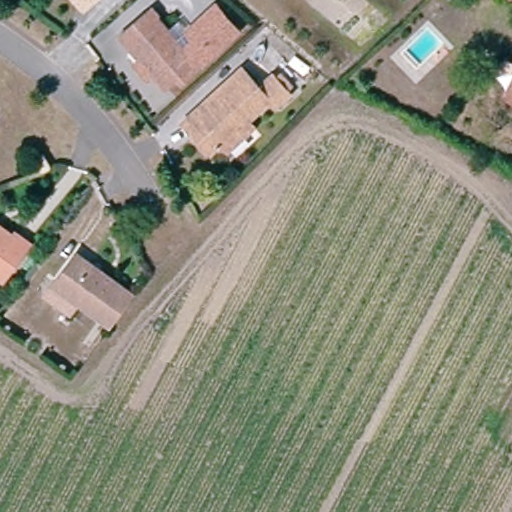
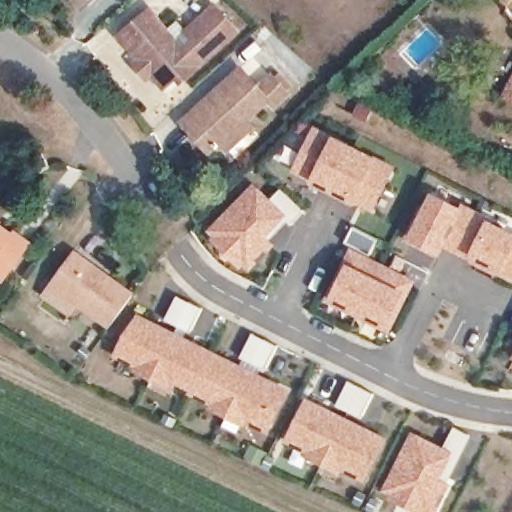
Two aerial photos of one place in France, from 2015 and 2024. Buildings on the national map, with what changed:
unchanged [(146,5),(179,45),(188,36),(180,26),(209,2),(231,29),(177,75),(174,72),(158,85),(114,31),(146,5)]
unchanged [(190,131),(177,117),(236,64),(255,85),(268,72),(286,91),(272,105),(265,98),(244,118),(239,131),(227,142),(217,143),(208,151),(190,131)]
unchanged [(512,82),(512,99),(505,95),(512,82)]
new [(336,136),(377,156),(396,164),(375,211),(354,200),(314,180),(293,172),(316,126),(336,136)]
new [(271,198),(282,188),(305,213),(292,225),(288,223),(273,238),(278,244),(250,272),(245,266),(240,270),(211,241),(216,237),(209,228),(256,183),(271,198)]
new [(431,193),(466,209),(467,204),(492,217),(490,220),(512,230),(512,279),(470,263),(472,259),(447,247),(442,256),(437,252),(435,257),(402,241),(421,206),(425,207),(431,193)]
new [(378,241),(370,256),(417,279),(390,334),(323,303),(351,246),(347,245),(356,229),(378,241)]
unchanged [(2,236),(9,230),(23,242),(0,270),(0,234),(2,236)]
unchanged [(52,287),(77,255),(126,291),(129,293),(105,325),(97,320),(52,287)]
new [(137,320),(288,396),(269,434),(117,358),(137,320)]
new [(335,410),(349,380),(375,394),(360,424),(387,437),(367,482),(345,471),(342,475),(306,458),(305,451),(285,443),(307,397),(335,410)]
new [(445,446),(454,426),(472,435),(450,481),(452,482),(438,512),(414,512),(387,500),(390,493),(383,491),(412,431),(445,446)]

